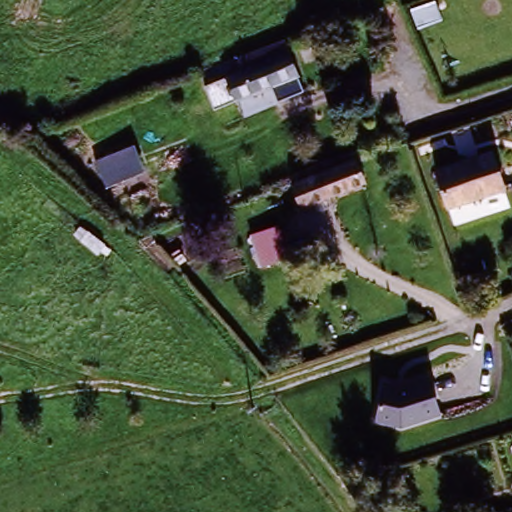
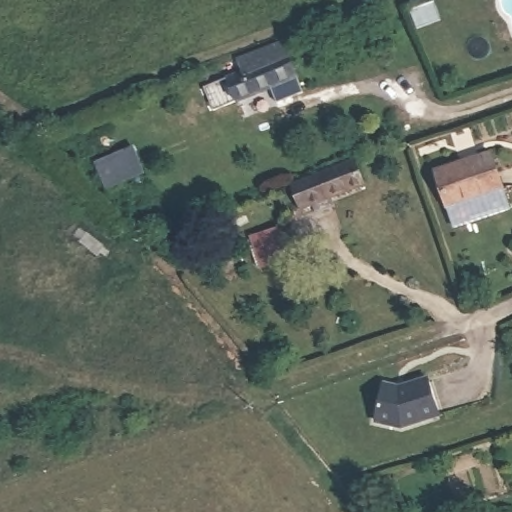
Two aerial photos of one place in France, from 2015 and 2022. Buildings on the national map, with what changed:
unchanged [(205,92),(217,87),(244,76),(240,67),(264,59),(284,51),(296,82),(226,109),(213,113),(205,92)]
unchanged [(145,177),(109,191),(98,163),(135,149),(145,177)]
unchanged [(448,211),(436,177),(479,161),(490,157),(495,169),(504,192),(448,211)]
unchanged [(314,208),(304,211),(302,212),(293,190),(356,167),(365,190),(332,202),(337,215),(319,221),(314,208)]
unchanged [(265,266),(255,238),(277,231),(287,258),(265,266)]
unchanged [(384,382),(398,385),(427,377),(441,418),(402,429),(375,424),(384,382)]

